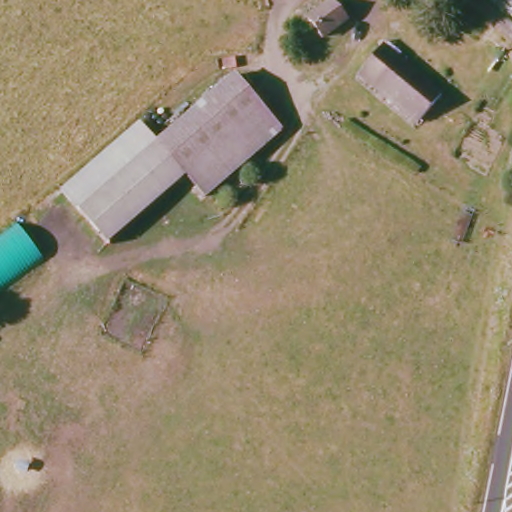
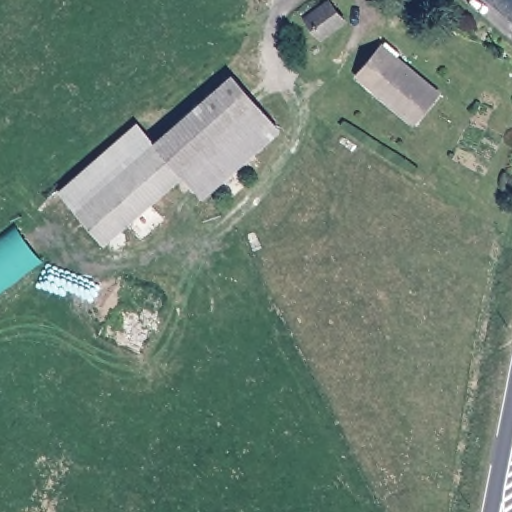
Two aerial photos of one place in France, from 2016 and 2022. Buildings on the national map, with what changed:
unchanged [(503,12),(488,0),(512,0),(512,2),(503,12)]
unchanged [(512,2),(512,20),(503,12),(512,2)]
unchanged [(357,27),(319,50),(305,35),(340,5),(357,27)]
unchanged [(445,97),(424,122),(375,81),(370,77),(393,52),(399,58),(445,97)]
unchanged [(141,127),(141,126),(152,140),(158,147),(235,75),(284,131),(207,199),(187,178),(112,245),(65,190),(141,127)]
unchanged [(40,257),(0,287),(0,240),(17,227),(40,257)]

